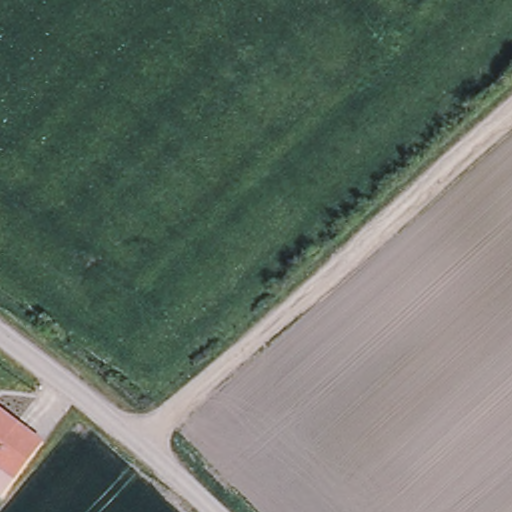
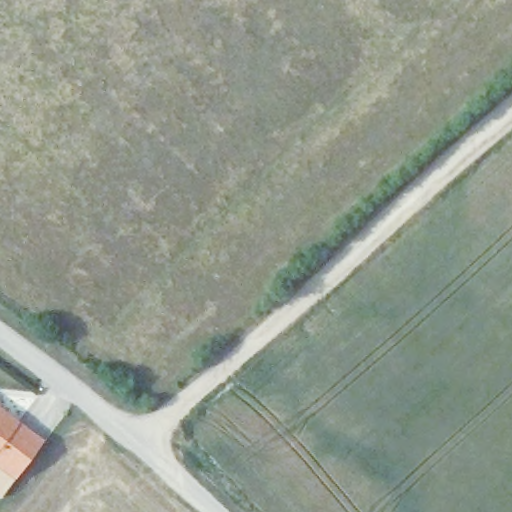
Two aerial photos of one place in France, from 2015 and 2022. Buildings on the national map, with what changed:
unchanged [(34,448),(17,473),(0,460),(0,408),(41,438),(34,448)]

